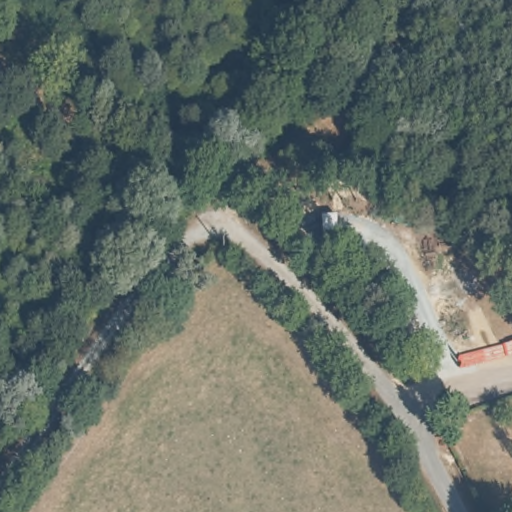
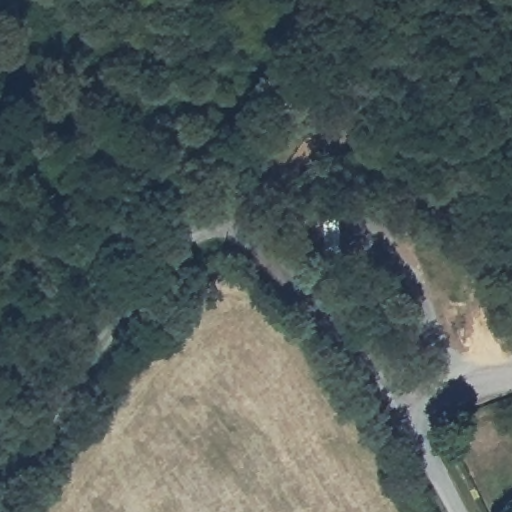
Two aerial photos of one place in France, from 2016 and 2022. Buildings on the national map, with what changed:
[]

